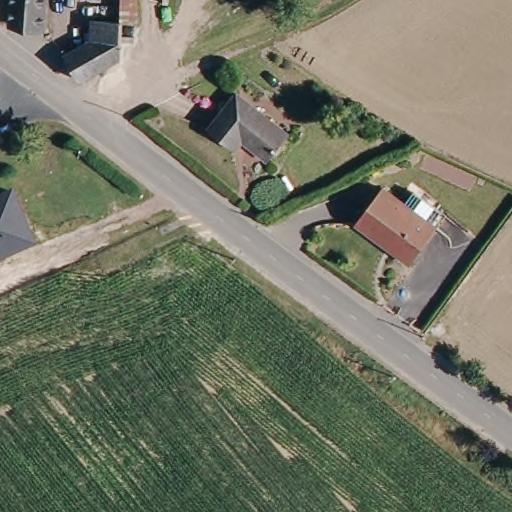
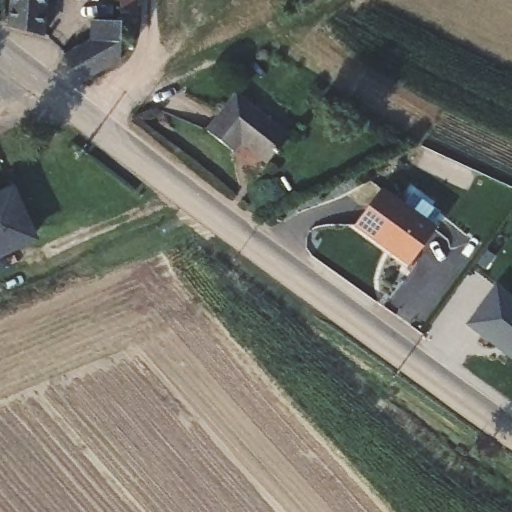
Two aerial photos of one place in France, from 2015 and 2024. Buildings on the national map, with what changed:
unchanged [(46,25),(11,20),(12,0),(47,0),(46,25)]
unchanged [(139,15),(125,15),(125,51),(105,62),(78,76),(60,44),(95,31),(96,10),(114,10),(114,0),(139,0),(139,15)]
unchanged [(233,95),(288,135),(266,162),(238,141),(231,151),(206,130),(233,95)]
unchanged [(0,258),(0,194),(14,187),(38,241),(0,258)]
unchanged [(377,194),(401,211),(409,198),(438,219),(409,266),(356,230),(377,194)]
new [(497,289),(512,300),(512,357),(509,355),(509,353),(484,335),(483,336),(470,326),(497,289)]

